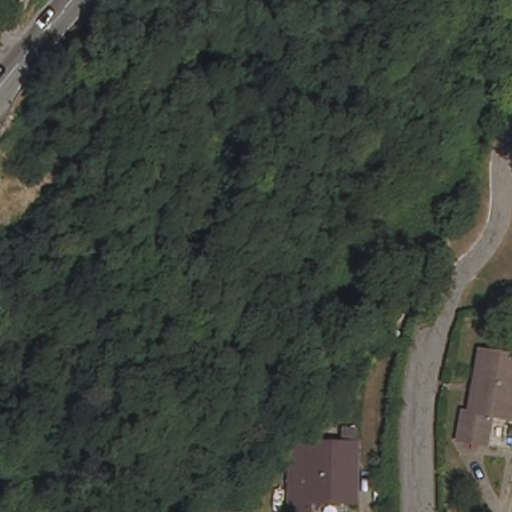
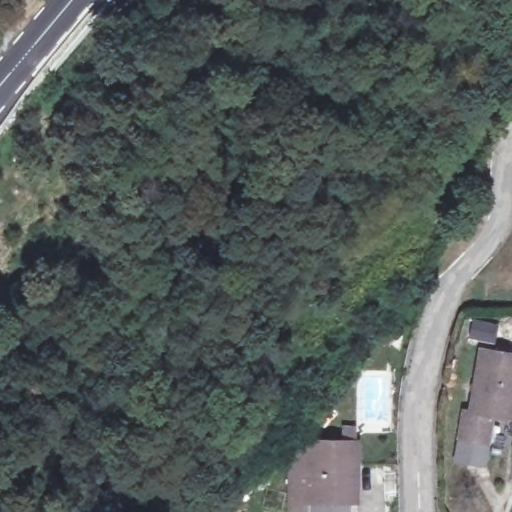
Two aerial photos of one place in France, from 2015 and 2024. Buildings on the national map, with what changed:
unchanged [(473,402),(486,339),(512,344),(512,409),(497,406),(491,435),(463,430),(467,401),(473,402)]
unchanged [(311,502),(311,512),(293,512),(293,479),(293,450),(293,443),(298,443),(310,443),(358,440),(359,463),(361,501),(351,501),(311,502)]
unchanged [(235,509),(235,512),(209,512),(210,507),(226,508),(235,509)]

